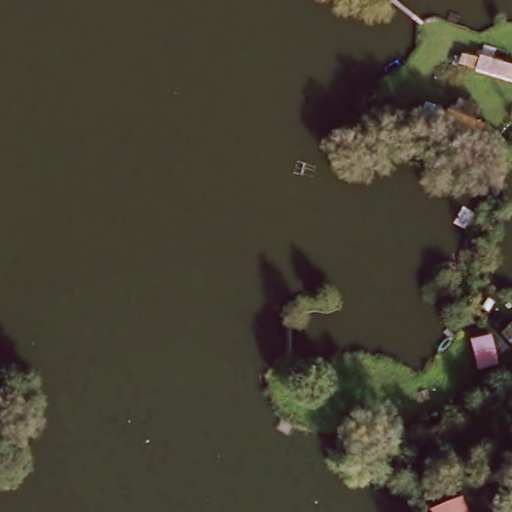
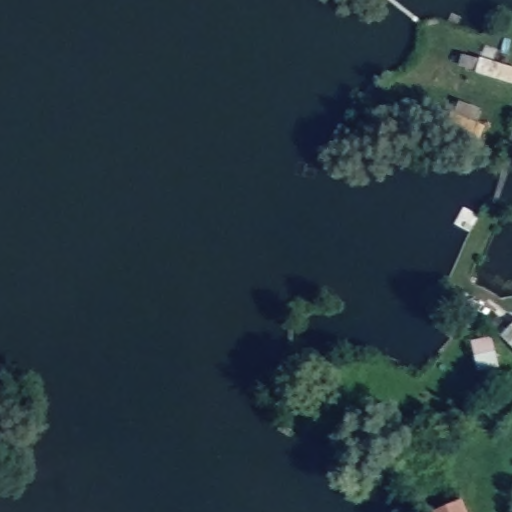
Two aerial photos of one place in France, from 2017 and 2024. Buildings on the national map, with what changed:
unchanged [(472,75),(477,56),(512,67),(512,87),(472,75)]
unchanged [(512,326),(512,350),(501,338),(512,326)]
unchanged [(494,337),(501,370),(478,376),(471,340),(494,337)]
unchanged [(461,512),(435,512),(434,507),(458,501),(461,512)]

